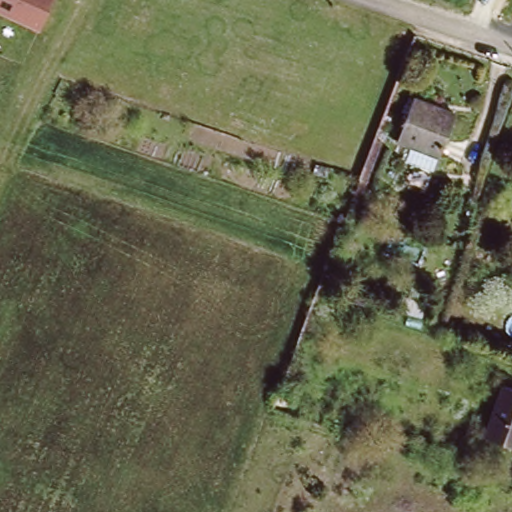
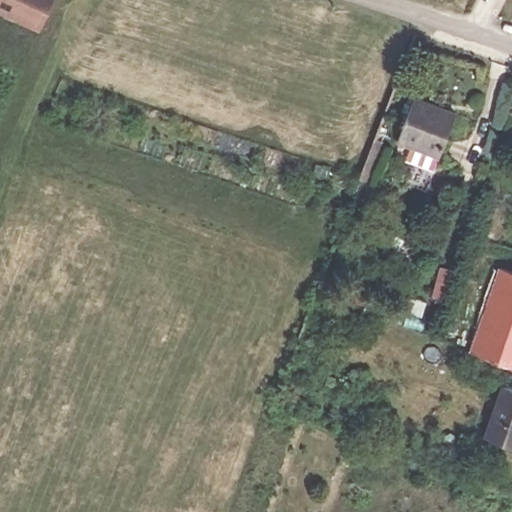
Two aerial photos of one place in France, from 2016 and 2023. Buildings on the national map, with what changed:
unchanged [(40,29),(0,11),(0,0),(53,0),(40,29)]
unchanged [(442,114),(456,119),(435,178),(408,168),(413,153),(398,147),(418,90),(447,101),(442,114)]
new [(501,269),(512,273),(512,361),(473,348),(501,269)]
unchanged [(489,435),(507,385),(512,387),(512,443),(489,435)]

